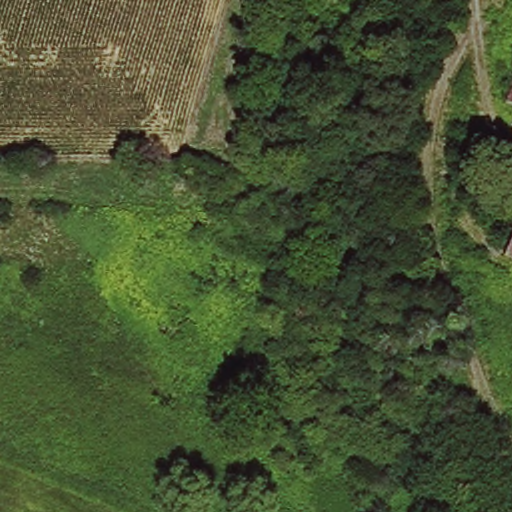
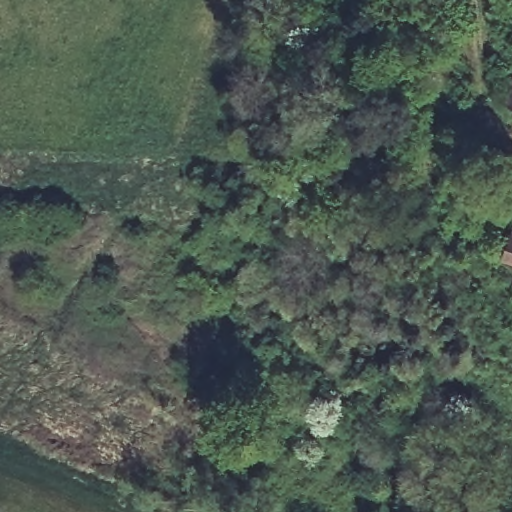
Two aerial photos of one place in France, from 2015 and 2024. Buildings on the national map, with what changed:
unchanged [(512,86),(512,103),(506,100),(512,86)]
unchanged [(506,262),(512,243),(512,264),(506,262)]

